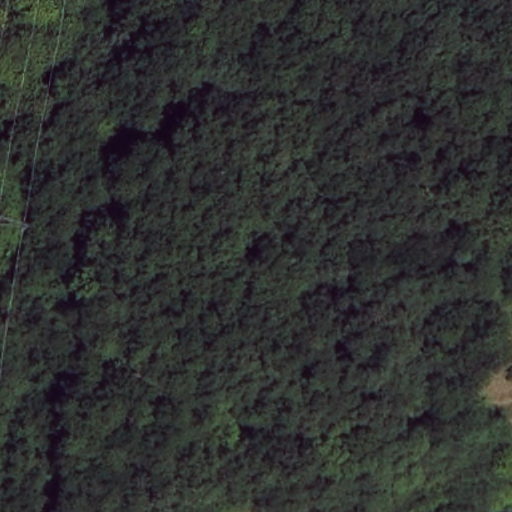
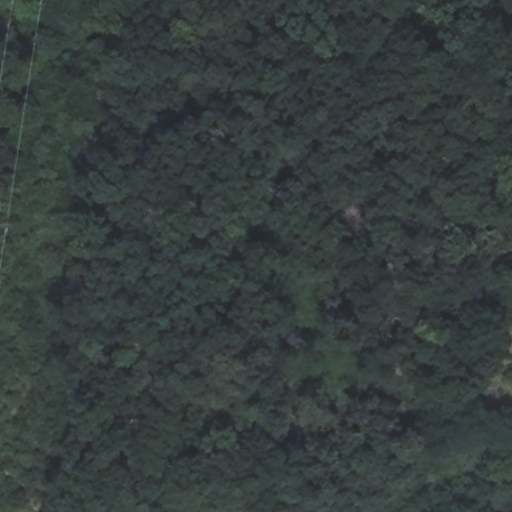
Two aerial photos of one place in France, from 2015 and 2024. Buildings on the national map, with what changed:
[]

